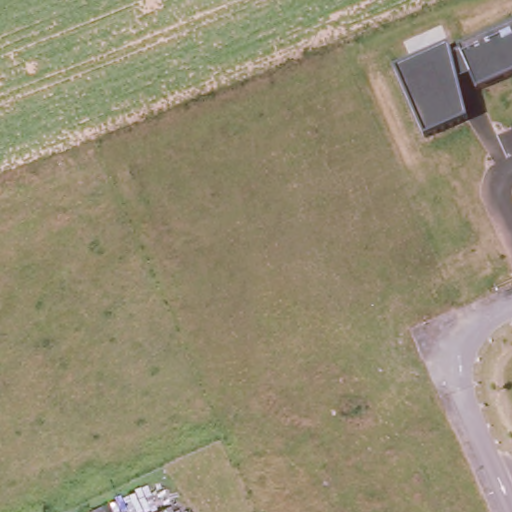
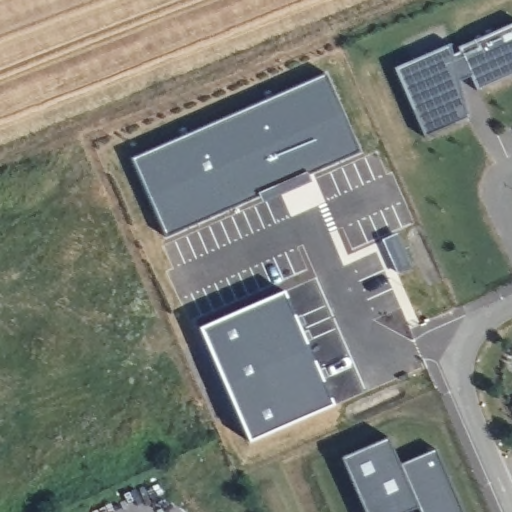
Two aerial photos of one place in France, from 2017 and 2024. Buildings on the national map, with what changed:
unchanged [(467,118),(425,135),(395,67),(450,43),(452,53),(461,51),(459,47),(512,24),(512,75),(477,90),(470,77),(458,79),(467,118)]
new [(167,235),(133,158),(325,74),(359,151),(167,235)]
new [(249,442),(198,328),(284,290),(334,405),(249,442)]
new [(408,512),(365,512),(342,458),(387,438),(399,464),(435,449),(462,512),(419,512),(417,508),(408,512)]

